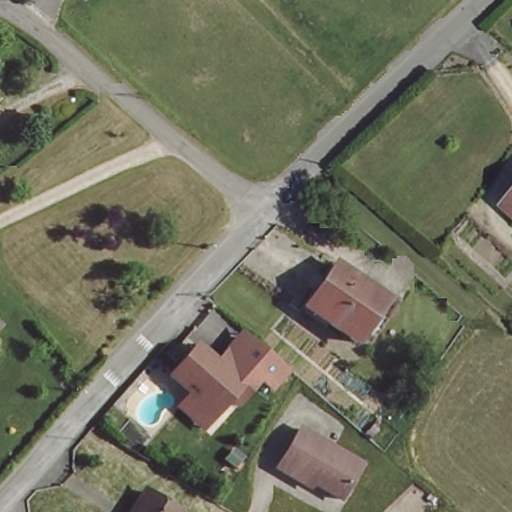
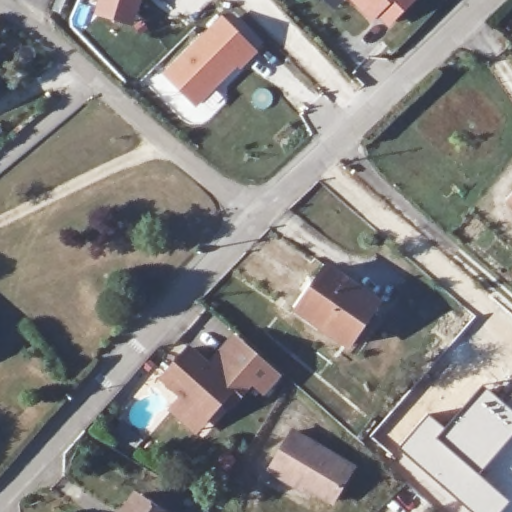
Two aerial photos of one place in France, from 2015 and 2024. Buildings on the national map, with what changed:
new [(134,26),(93,15),(97,0),(141,0),(134,26)]
new [(390,23),(380,12),(374,17),(358,0),(414,0),(390,23)]
unchanged [(224,20),(254,52),(240,66),(238,62),(195,103),(168,74),(224,20)]
unchanged [(385,308),(357,350),(295,312),(326,267),(385,308)]
unchanged [(175,407),(186,394),(165,376),(192,346),(218,369),(229,357),(256,381),(244,394),(233,407),(225,401),(211,417),(200,429),(175,407)]
new [(447,429),(486,388),(512,410),(512,436),(480,474),(439,438),(447,429)]
new [(447,429),(439,438),(480,474),(510,500),(500,512),(470,512),(435,483),(398,448),(427,412),(447,429)]
unchanged [(356,467),(335,500),(308,482),(304,487),(272,466),(297,429),(356,467)]
unchanged [(126,512),(136,497),(154,512),(126,512)]

